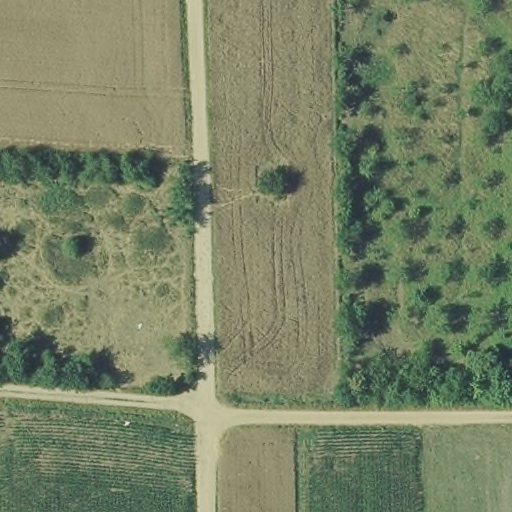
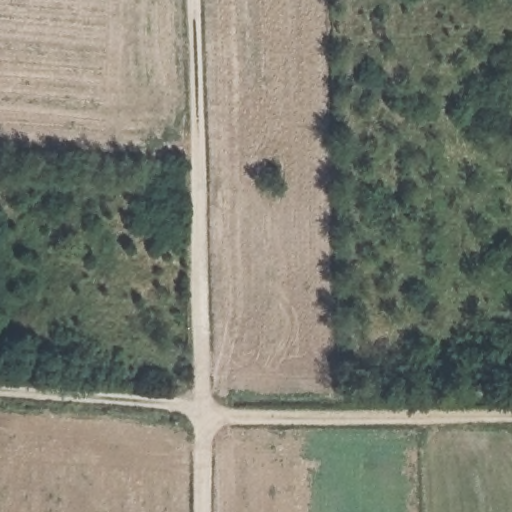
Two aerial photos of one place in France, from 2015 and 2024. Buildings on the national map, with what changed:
[]

